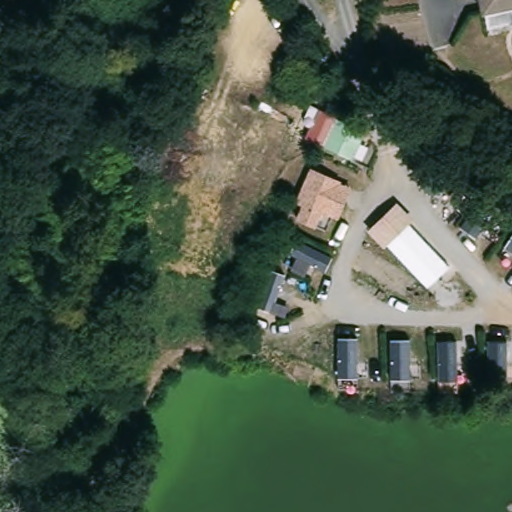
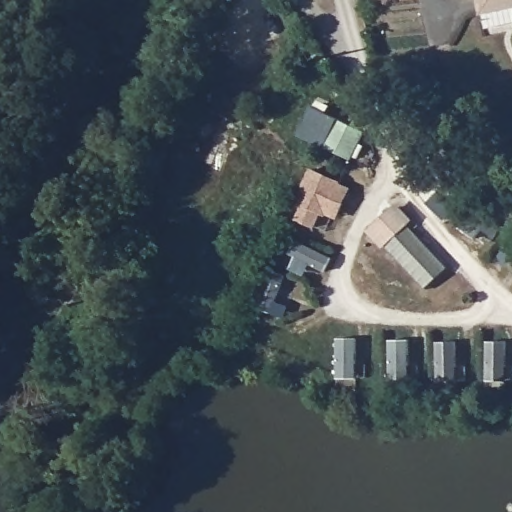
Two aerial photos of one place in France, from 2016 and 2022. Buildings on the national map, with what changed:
unchanged [(511,8),(510,19),(483,24),(478,0),(512,0),(512,2),(509,3),(511,8)]
unchanged [(322,148),(337,115),(371,130),(355,163),(322,148)]
unchanged [(310,168),(351,186),(338,219),(322,213),(316,229),(295,220),(301,205),(295,202),(310,168)]

